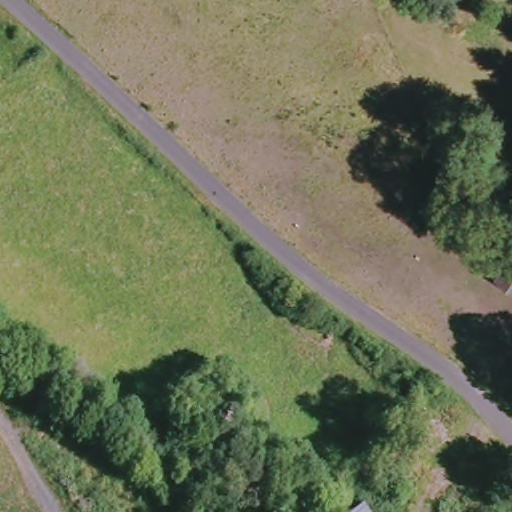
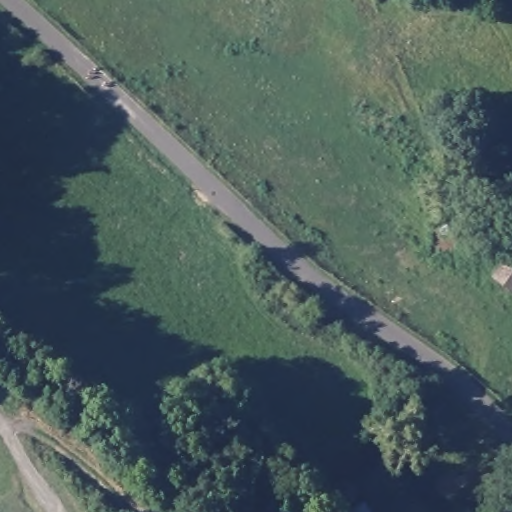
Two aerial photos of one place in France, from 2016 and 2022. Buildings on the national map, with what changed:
unchanged [(500,275),(512,259),(512,284),(500,275)]
unchanged [(372,512),(348,512),(365,500),(372,512)]

